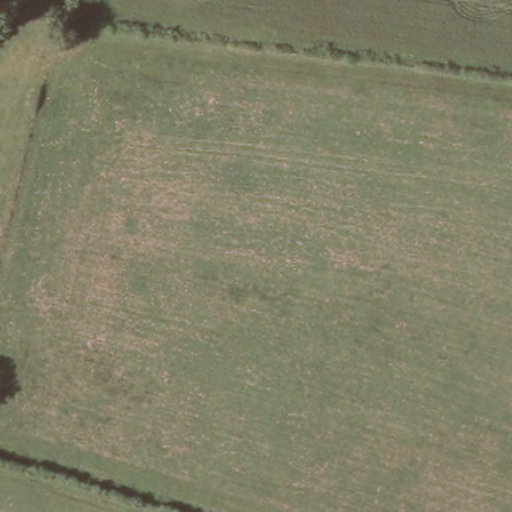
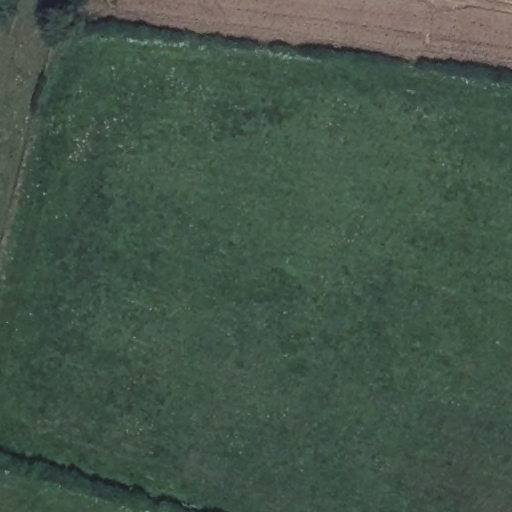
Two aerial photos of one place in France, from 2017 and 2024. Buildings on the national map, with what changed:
[]

